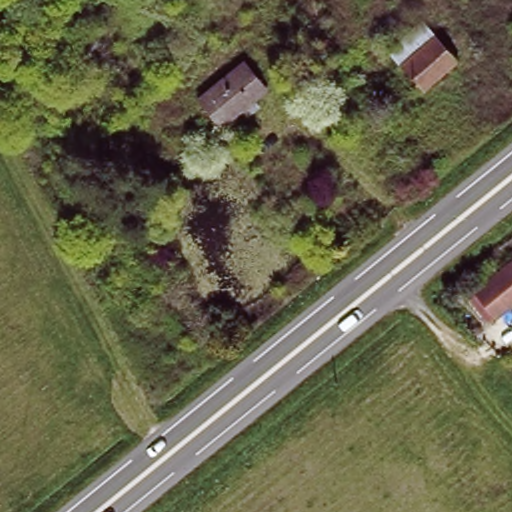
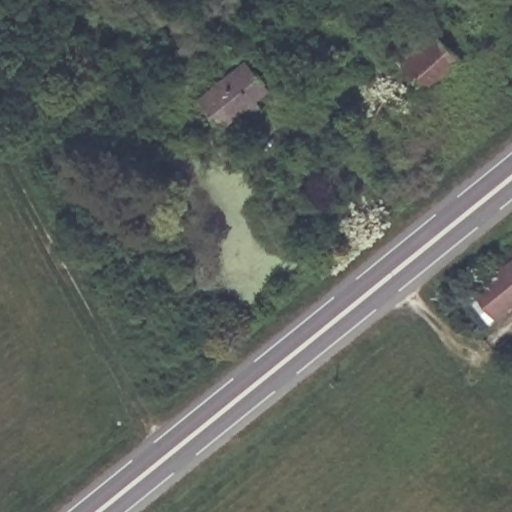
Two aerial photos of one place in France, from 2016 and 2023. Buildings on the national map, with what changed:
unchanged [(429,31),(453,61),(419,89),(395,59),(429,31)]
unchanged [(243,63),(267,91),(256,100),(262,107),(248,119),(241,112),(222,128),(198,98),(243,63)]
unchanged [(512,308),(498,320),(471,288),(512,255),(512,308)]

